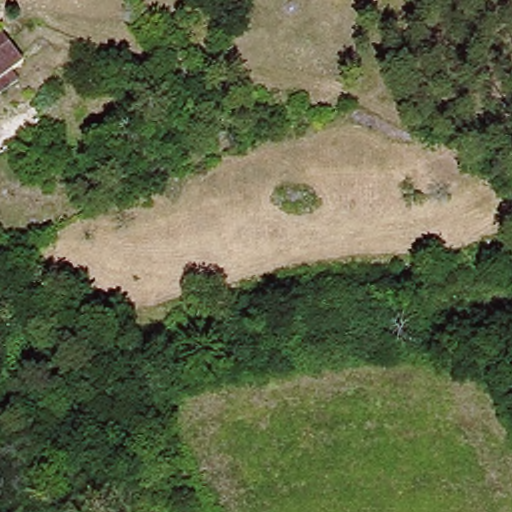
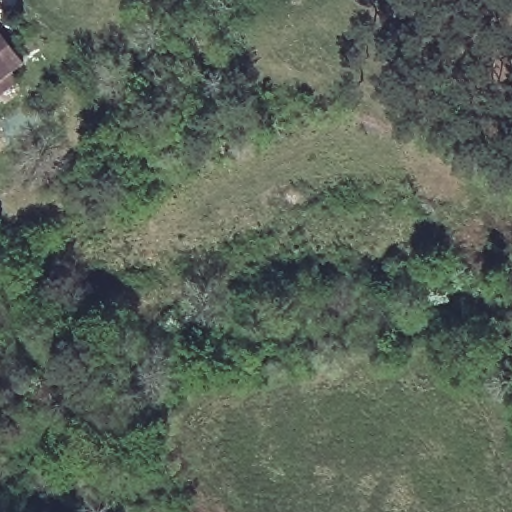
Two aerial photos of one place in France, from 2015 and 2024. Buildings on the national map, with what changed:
unchanged [(0,37),(18,60),(0,75),(0,37)]

